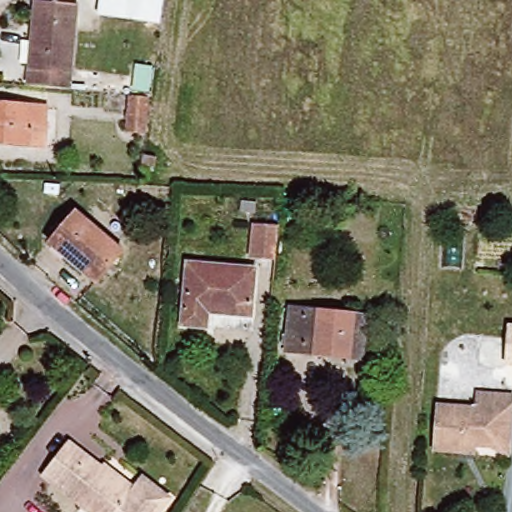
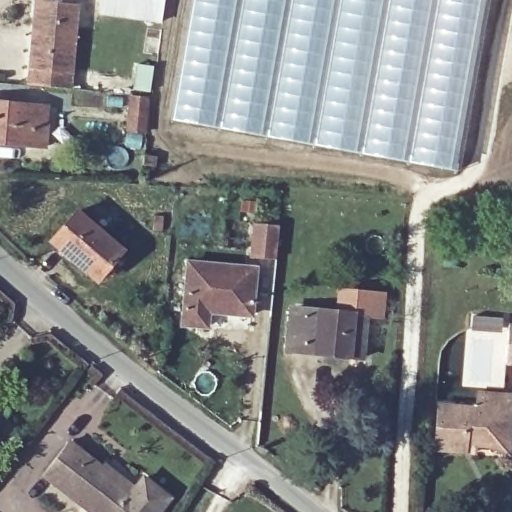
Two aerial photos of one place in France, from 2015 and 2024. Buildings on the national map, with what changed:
unchanged [(161,25),(99,16),(101,0),(165,0),(161,25)]
new [(191,0),(486,0),(455,170),(170,117),(191,0)]
unchanged [(27,27),(37,28),(37,1),(69,2),(65,85),(25,83),(27,27)]
new [(142,91),(133,90),(135,65),(152,66),(145,135),(125,134),(128,95),(139,96),(142,91)]
unchanged [(0,145),(0,104),(44,104),(44,146),(0,145)]
unchanged [(121,251),(90,282),(45,245),(69,212),(121,251)]
unchanged [(252,260),(254,224),(275,227),(271,263),(252,260)]
unchanged [(205,327),(180,325),(186,262),(250,270),(247,313),(205,311),(205,327)]
unchanged [(287,308),(358,313),(356,360),(285,352),(287,308)]
unchanged [(512,325),(512,366),(505,365),(509,325),(512,325)]
unchanged [(493,447),(463,441),(462,451),(432,448),(435,403),(473,407),(475,392),(511,397),(509,415),(503,450),(493,447)]
unchanged [(96,480),(123,500),(136,482),(163,501),(154,512),(84,512),(40,477),(65,447),(104,473),(96,480)]

